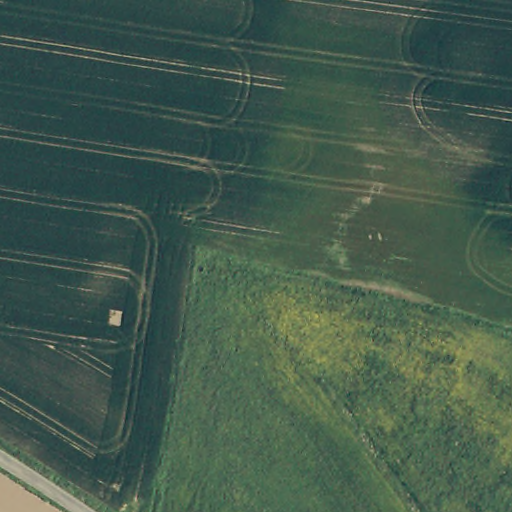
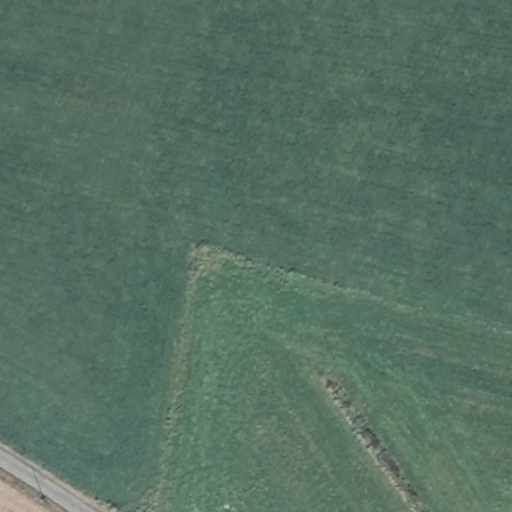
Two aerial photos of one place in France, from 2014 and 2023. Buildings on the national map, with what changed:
[]

